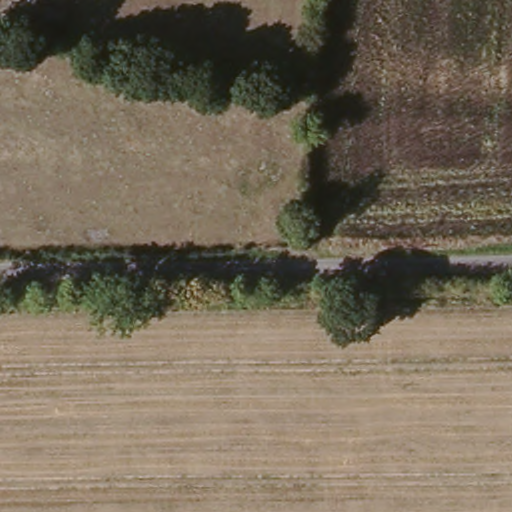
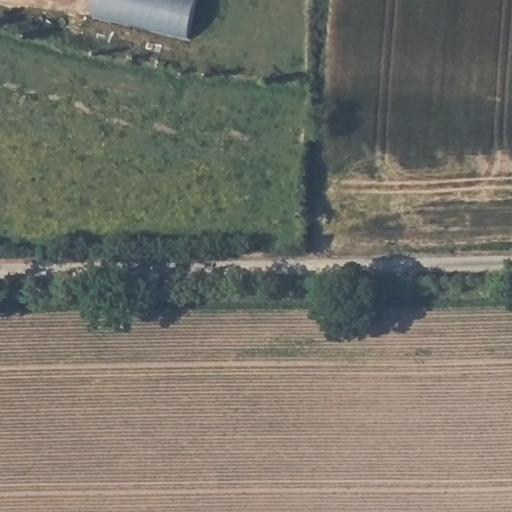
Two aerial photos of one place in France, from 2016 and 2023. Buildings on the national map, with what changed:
new [(192,51),(90,28),(97,0),(203,0),(192,51)]

